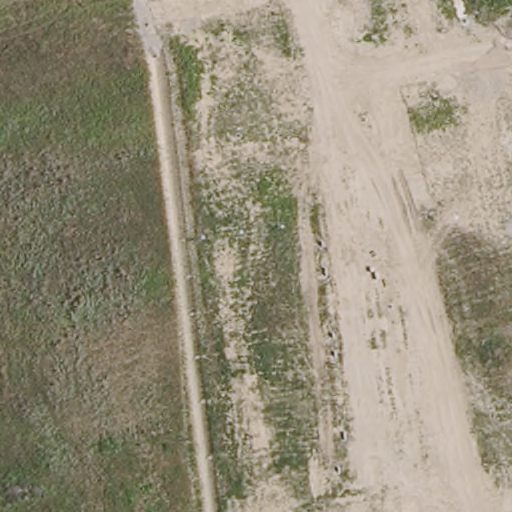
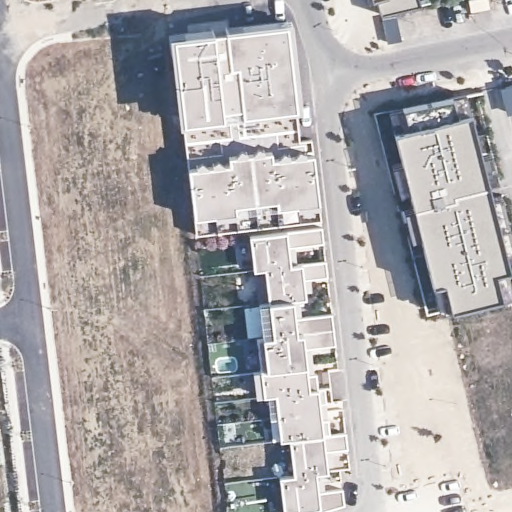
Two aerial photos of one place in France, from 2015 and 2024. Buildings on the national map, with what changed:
new [(425,5),(386,18),(380,0),(424,0),(425,5)]
new [(300,154),(312,153),(317,200),(277,204),(275,197),(233,202),(235,212),(194,215),(175,51),(185,49),(184,35),(290,19),(297,109),(300,154)]
new [(468,113),(508,268),(496,272),(502,294),(451,308),(443,280),(432,282),(395,132),(468,113)]
new [(317,489),(341,490),(343,504),(318,506),(284,510),(280,477),(295,474),(288,439),(280,439),(274,394),(263,395),(257,338),(263,337),(258,305),(270,303),(265,268),(255,269),(250,237),(285,231),(322,227),(322,242),(293,246),(297,264),(326,261),(326,277),(302,278),(305,296),(297,297),(300,316),(331,313),(335,344),(310,348),(318,388),(325,387),(330,433),(345,432),(347,447),(323,449),(327,471),(313,473),(317,489)]

